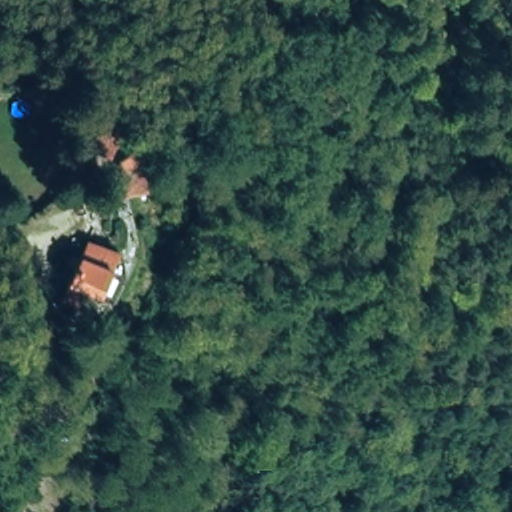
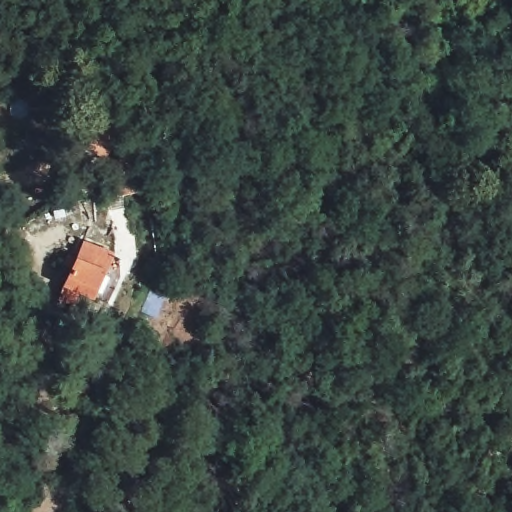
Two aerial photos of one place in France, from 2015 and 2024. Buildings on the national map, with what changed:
unchanged [(122,145),(114,164),(92,155),(100,135),(122,145)]
unchanged [(147,196),(126,202),(120,163),(141,157),(147,196)]
unchanged [(100,304),(69,291),(88,246),(120,258),(100,304)]

